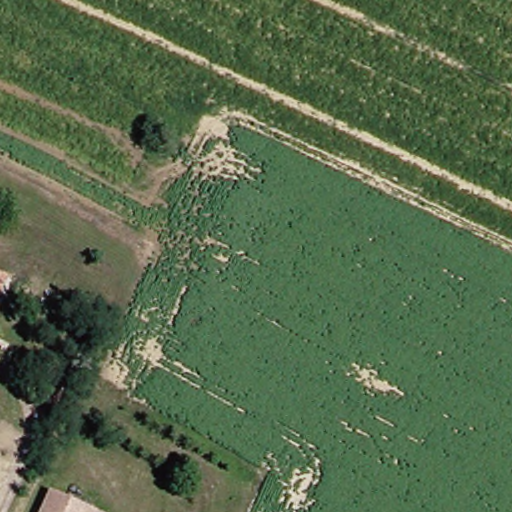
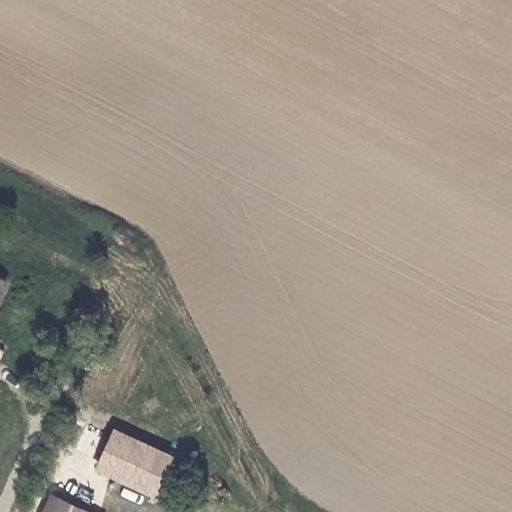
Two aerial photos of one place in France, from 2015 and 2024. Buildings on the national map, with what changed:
unchanged [(0,295),(0,275),(7,279),(0,295)]
new [(177,458),(158,500),(99,472),(118,431),(177,458)]
unchanged [(48,501),(73,512),(43,512),(48,501)]

